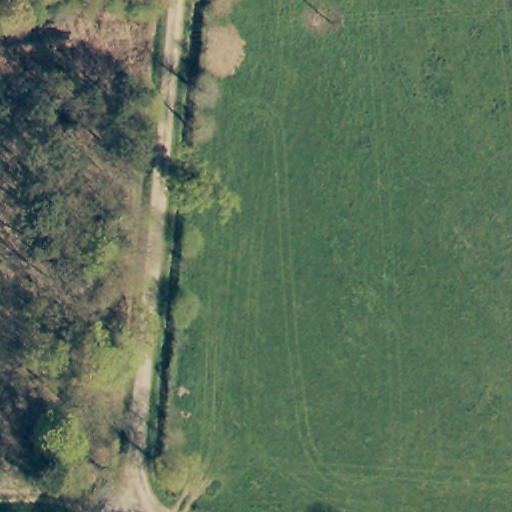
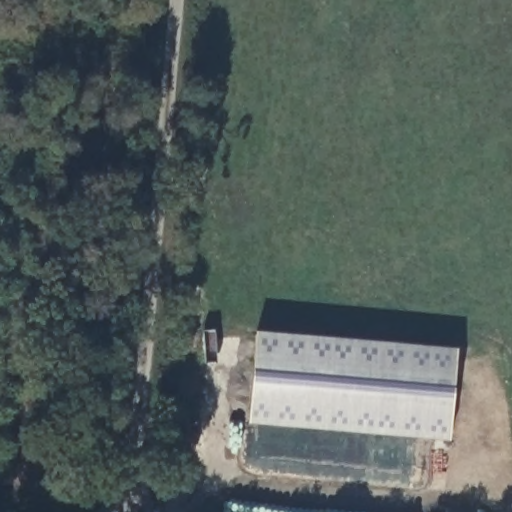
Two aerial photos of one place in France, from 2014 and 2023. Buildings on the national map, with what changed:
new [(450,442),(245,426),(254,332),(459,350),(450,442)]

